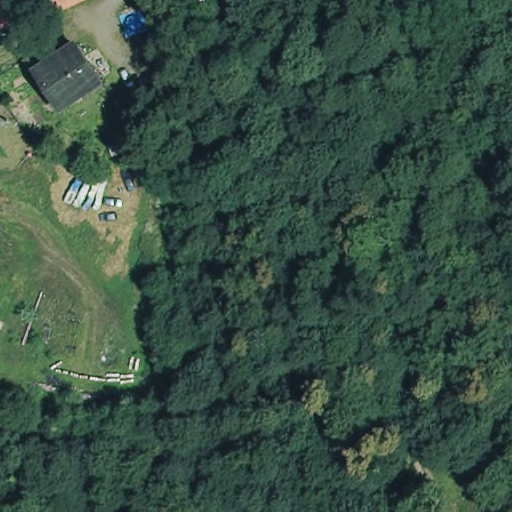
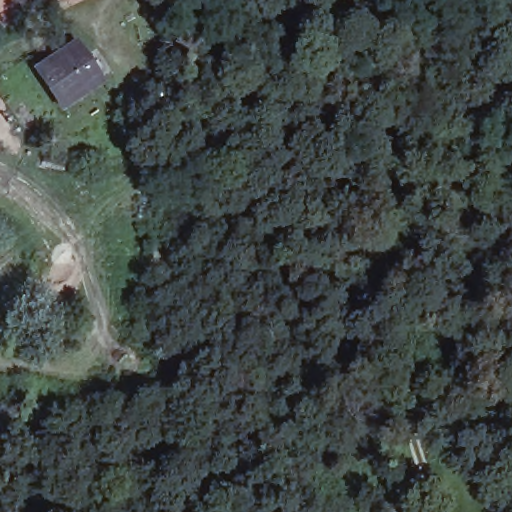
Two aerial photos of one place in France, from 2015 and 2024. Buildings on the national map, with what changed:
unchanged [(0,19),(0,0),(44,0),(0,19)]
unchanged [(68,118),(59,105),(38,72),(71,51),(76,48),(98,80),(106,93),(68,118)]

